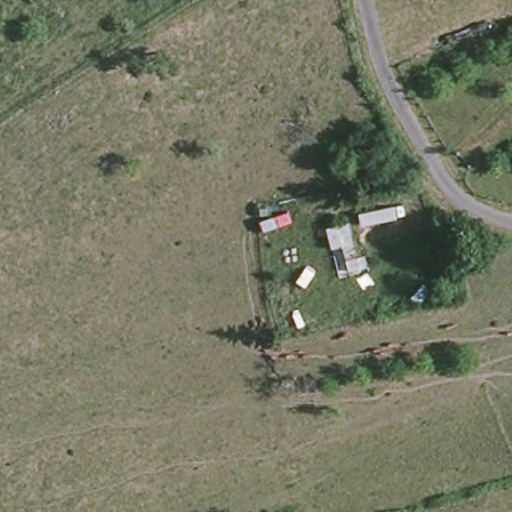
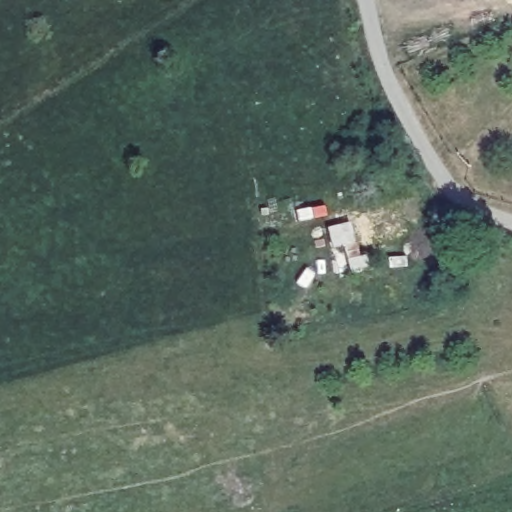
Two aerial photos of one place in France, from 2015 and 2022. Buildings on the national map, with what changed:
unchanged [(345,226),(357,272),(346,275),(335,229),(345,226)]

